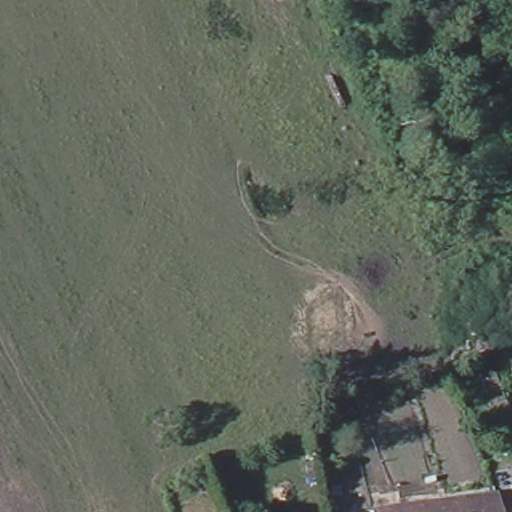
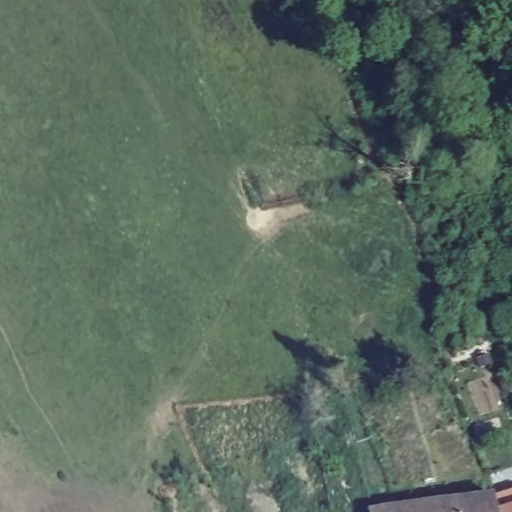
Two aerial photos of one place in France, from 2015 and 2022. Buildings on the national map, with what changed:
unchanged [(512,487),(512,512),(495,512),(490,493),(512,487)]
unchanged [(495,512),(367,512),(365,507),(490,493),(495,512)]

